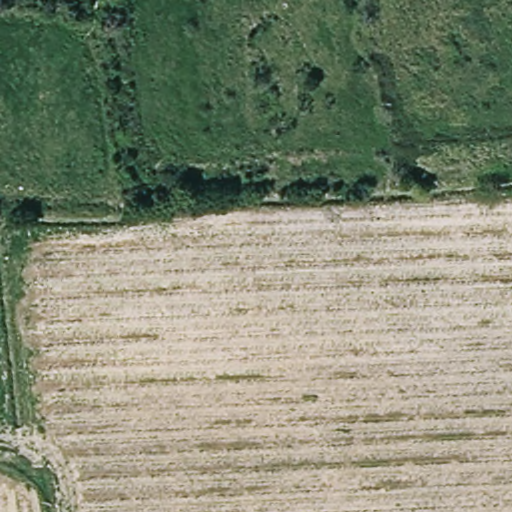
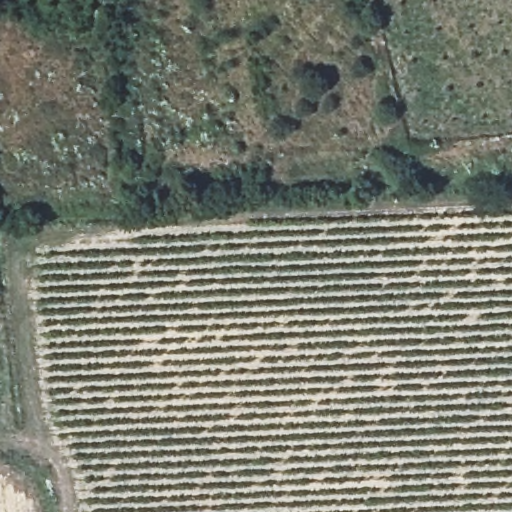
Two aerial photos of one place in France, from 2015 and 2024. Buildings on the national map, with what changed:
[]

